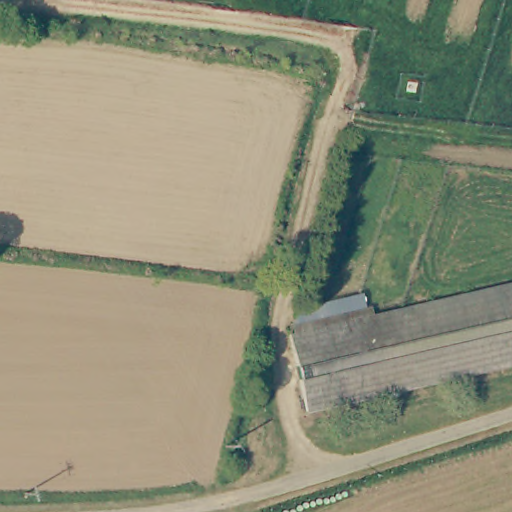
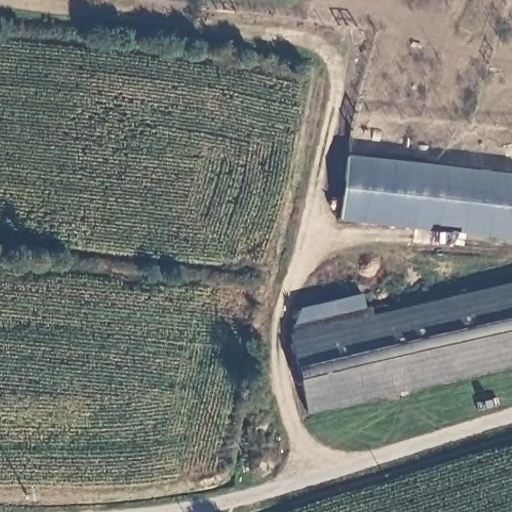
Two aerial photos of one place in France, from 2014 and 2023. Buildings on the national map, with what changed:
new [(338,220),(346,155),(512,174),(512,238),(338,220)]
unchanged [(308,405),(291,328),(512,280),(512,360),(308,405)]

